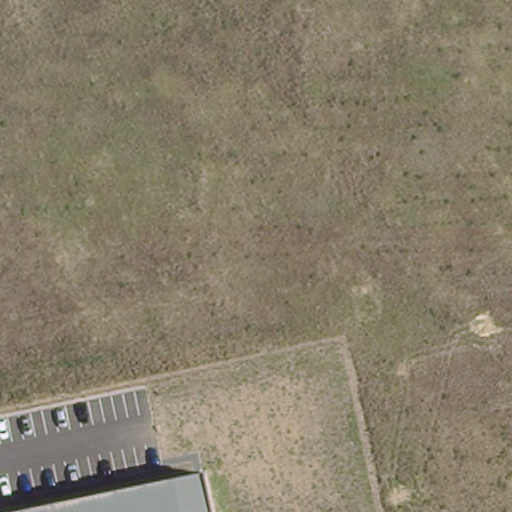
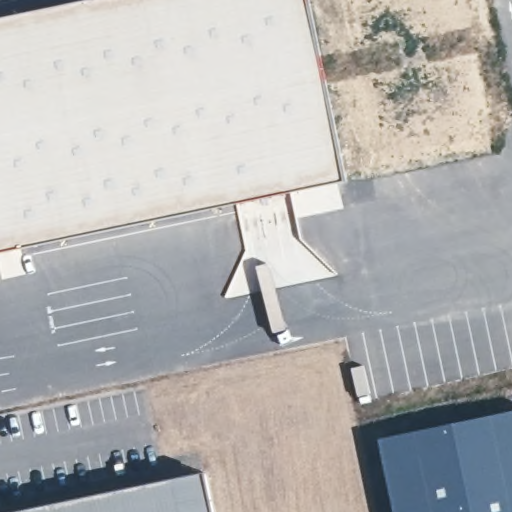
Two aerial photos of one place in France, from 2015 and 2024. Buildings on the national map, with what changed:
new [(0,18),(87,0),(307,0),(345,180),(0,251),(0,18)]
new [(512,412),(512,512),(397,512),(382,438),(512,412)]
unchanged [(215,512),(17,512),(207,471),(215,512)]

